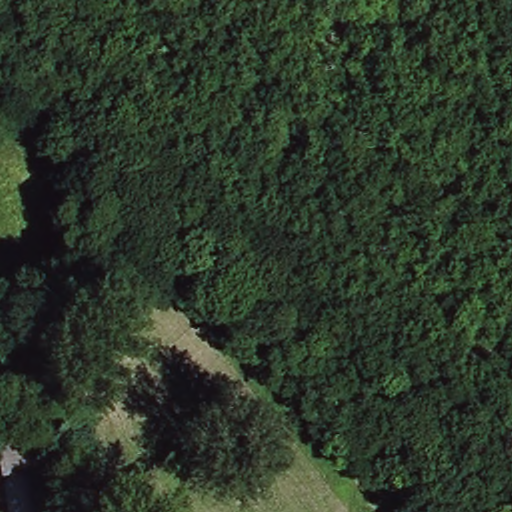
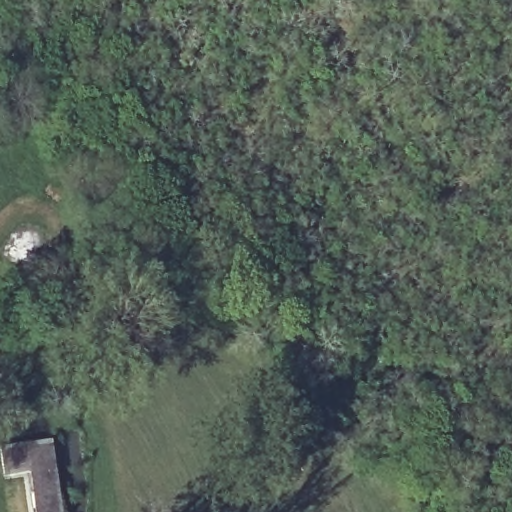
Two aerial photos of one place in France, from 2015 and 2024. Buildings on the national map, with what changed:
new [(50,439),(61,512),(32,512),(26,474),(0,479),(0,446),(50,439)]

